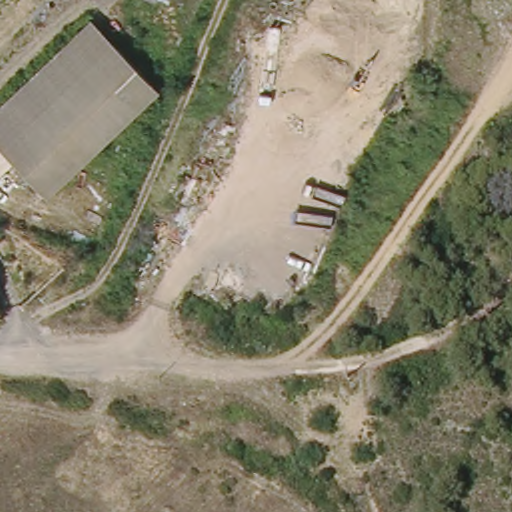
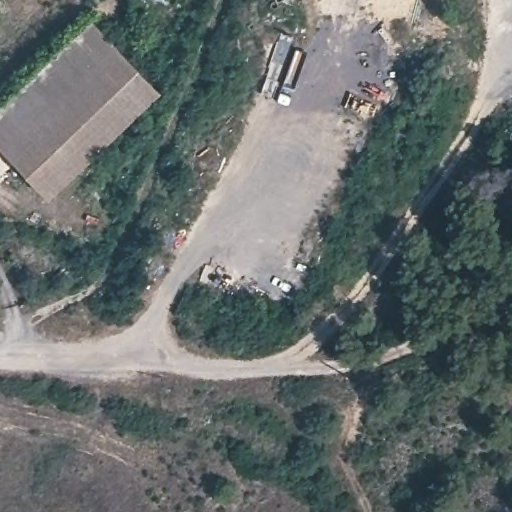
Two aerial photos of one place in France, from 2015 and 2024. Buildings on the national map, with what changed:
unchanged [(45,191),(0,134),(0,99),(97,20),(159,99),(45,191)]

